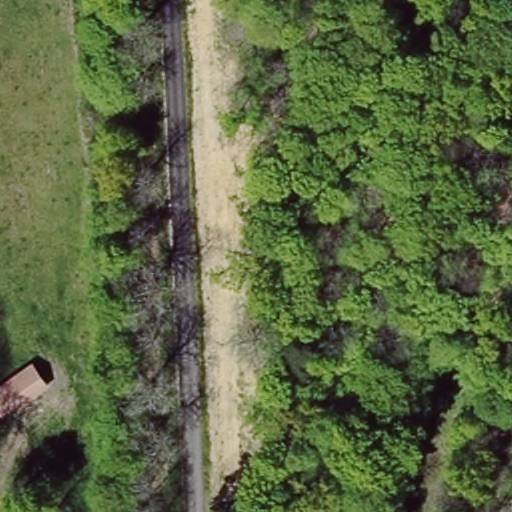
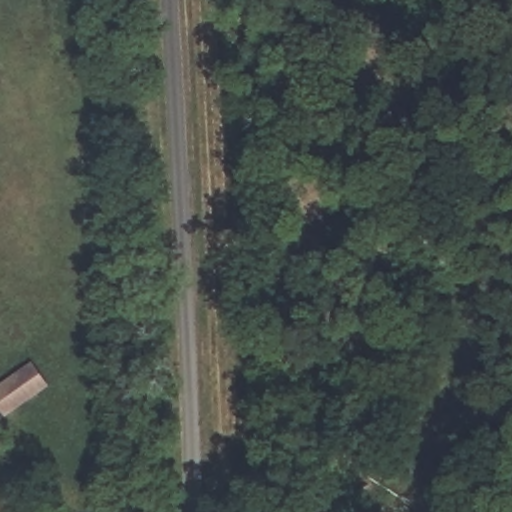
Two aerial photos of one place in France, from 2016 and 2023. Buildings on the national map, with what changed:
unchanged [(3,418),(0,414),(0,383),(32,359),(50,384),(3,418)]

